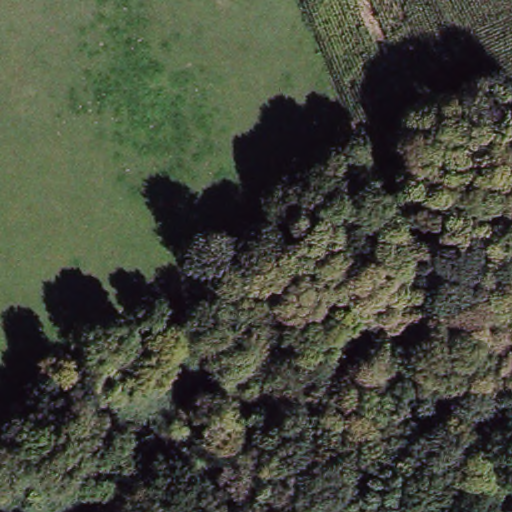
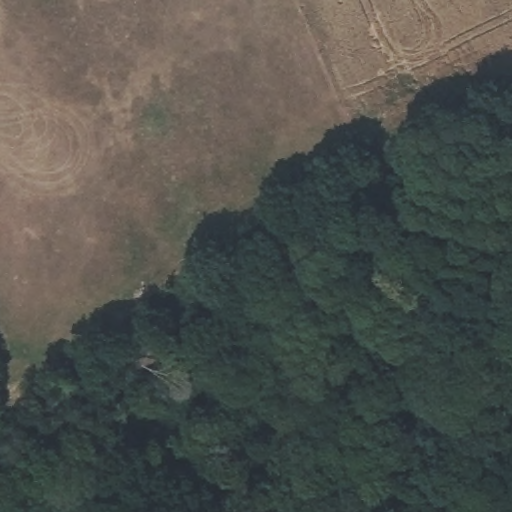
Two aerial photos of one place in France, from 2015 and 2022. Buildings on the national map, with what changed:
unchanged [(4,376),(18,371),(27,397),(13,404),(4,376)]

